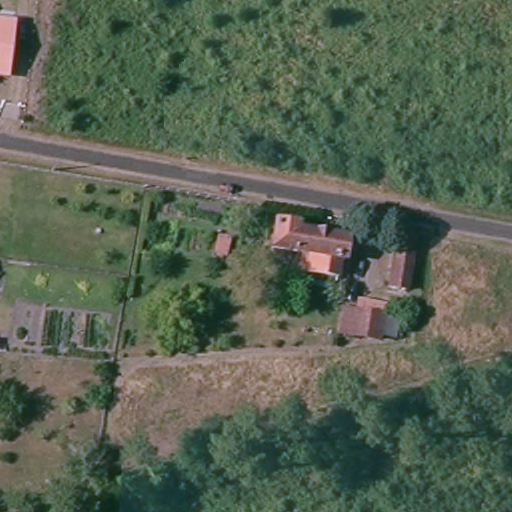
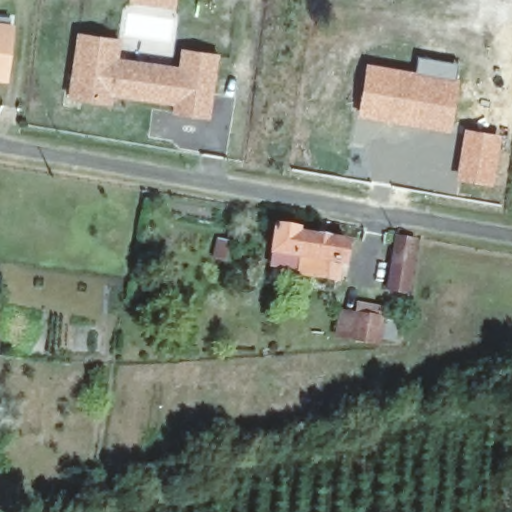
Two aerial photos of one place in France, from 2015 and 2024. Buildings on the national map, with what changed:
new [(129,3),(129,0),(177,0),(176,10),(129,3)]
unchanged [(9,40),(2,85),(0,85),(0,25),(11,26),(9,40)]
new [(121,39),(119,57),(178,65),(180,47),(219,54),(210,119),(170,114),(173,104),(114,96),(113,105),(68,99),(76,32),(121,39)]
new [(357,116),(367,63),(416,71),(418,56),(459,64),(456,79),(459,79),(451,132),(357,116)]
new [(497,137),(489,181),(461,176),(468,132),(497,137)]
unchanged [(267,254),(270,230),(346,239),(343,262),(337,261),(334,280),(295,275),(265,271),(267,254)]
unchanged [(414,240),(408,291),(384,288),(389,235),(414,240)]
unchanged [(397,321),(394,341),(382,338),(359,343),(332,338),(337,307),(397,321)]

